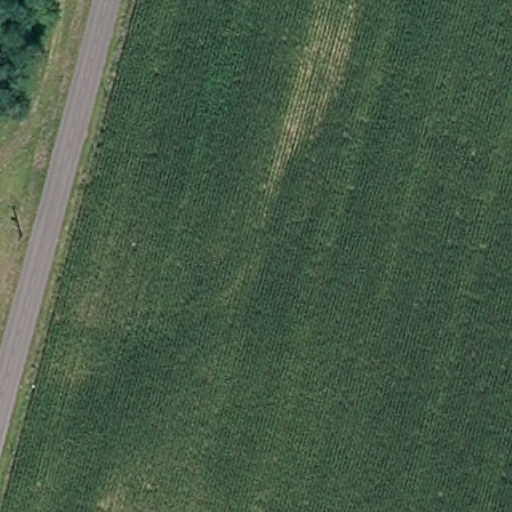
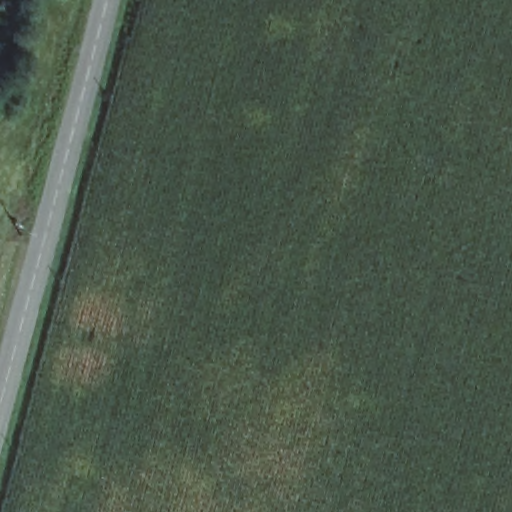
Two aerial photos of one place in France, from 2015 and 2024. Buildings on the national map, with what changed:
[]

